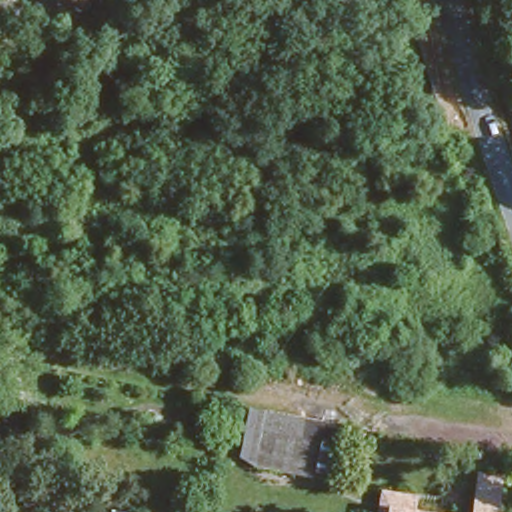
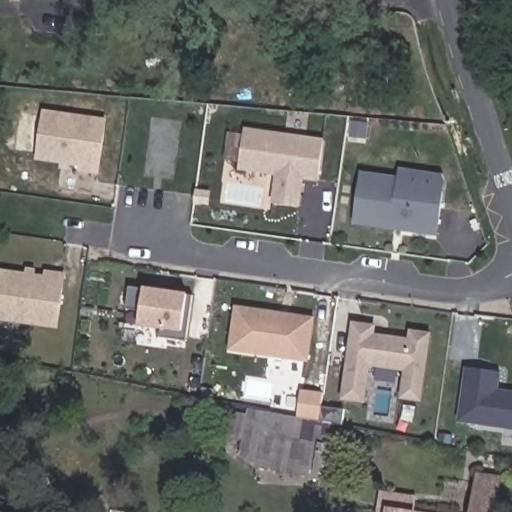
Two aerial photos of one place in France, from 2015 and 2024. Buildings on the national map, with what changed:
new [(43,111),(105,120),(97,171),(79,168),(80,165),(36,158),(43,111)]
new [(246,130),(325,141),(319,182),(304,179),(300,208),(274,203),(277,175),(240,170),(246,130)]
new [(361,175),(397,180),(399,171),(441,177),(444,183),(442,194),(359,182),(361,175)]
new [(359,182),(442,194),(436,236),(353,224),(359,182)]
new [(0,271),(44,277),(45,274),(63,276),(56,326),(0,319),(0,275),(0,271)]
new [(129,286),(193,296),(187,342),(159,339),(160,329),(139,326),(141,311),(125,309),(129,286)]
new [(235,309),(314,320),(308,364),(229,352),(235,309)]
new [(352,323),(373,326),(372,336),(409,341),(410,332),(428,334),(419,400),(401,397),(405,369),(368,364),(363,401),(341,399),(352,323)]
new [(500,375),(498,394),(512,396),(512,432),(459,424),(467,369),(500,375)]
unchanged [(260,400),(296,407),(295,415),(292,435),(254,427),(258,408),(260,400)]
unchanged [(321,441),(314,476),(248,463),(254,427),(292,435),(321,441)]
unchanged [(479,473),(503,477),(498,512),(475,512),(479,473)]
unchanged [(380,490),(415,495),(414,512),(376,512),(380,490)]

